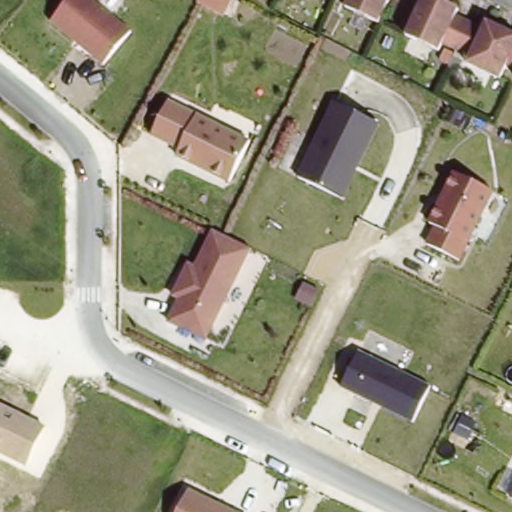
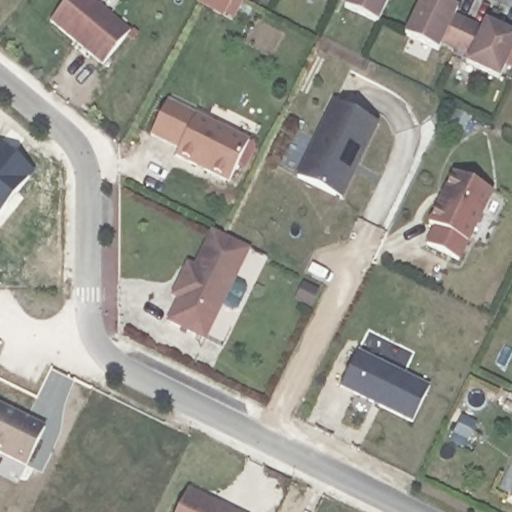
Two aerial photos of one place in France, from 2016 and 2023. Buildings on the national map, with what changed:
unchanged [(66,0),(97,0),(132,29),(103,64),(50,20),(66,0)]
new [(198,0),(245,0),(235,18),(226,13),(224,15),(197,2),(198,0)]
unchanged [(340,6),(343,0),(384,0),(373,22),(340,6)]
unchanged [(453,7),(450,14),(478,27),(482,20),(512,34),(512,69),(502,65),(495,79),(462,63),(465,56),(437,44),(434,50),(400,35),(417,0),(439,0),(453,7)]
unchanged [(168,97),(197,110),(252,139),(230,180),(176,151),(179,146),(152,130),(168,97)]
unchanged [(332,99),(378,121),(342,197),(297,175),(332,99)]
new [(0,213),(0,155),(0,144),(12,154),(35,171),(0,213)]
unchanged [(495,190),(460,258),(425,241),(433,224),(427,220),(453,170),(495,190)]
unchanged [(252,246),(207,340),(165,321),(177,298),(170,295),(187,260),(194,263),(212,227),(252,246)]
unchanged [(358,347),(432,385),(412,421),(340,384),(358,347)]
unchanged [(27,468),(0,456),(0,403),(48,427),(27,468)]
unchanged [(242,512),(176,512),(188,486),(242,512)]
unchanged [(509,497),(512,491),(512,498),(509,497)]

